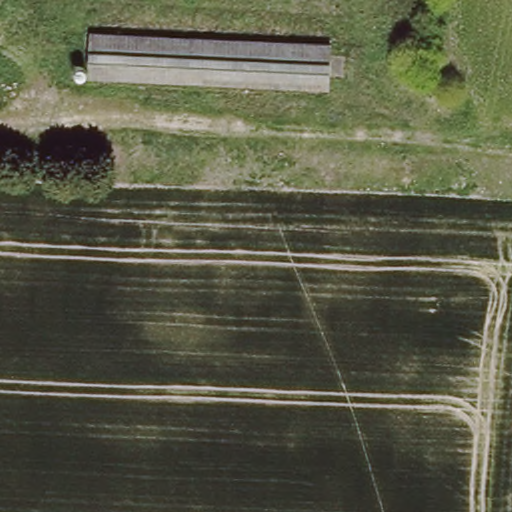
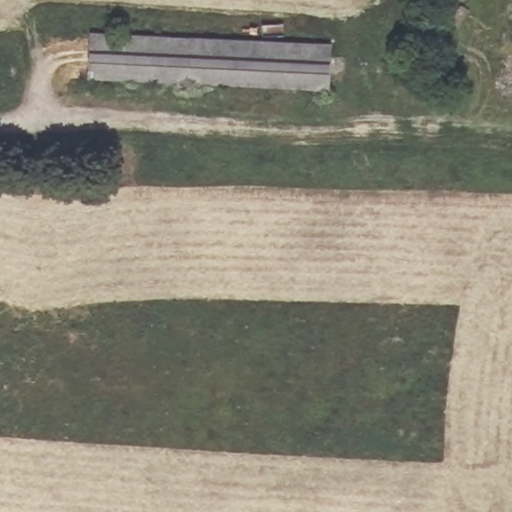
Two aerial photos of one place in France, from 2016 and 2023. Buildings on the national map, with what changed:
unchanged [(331,46),(330,95),(93,85),(92,35),(331,46)]

